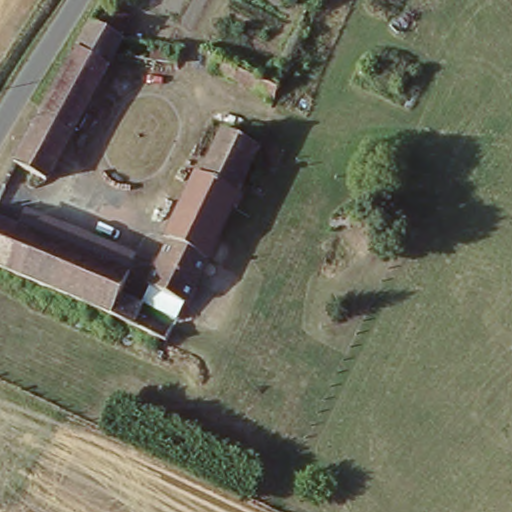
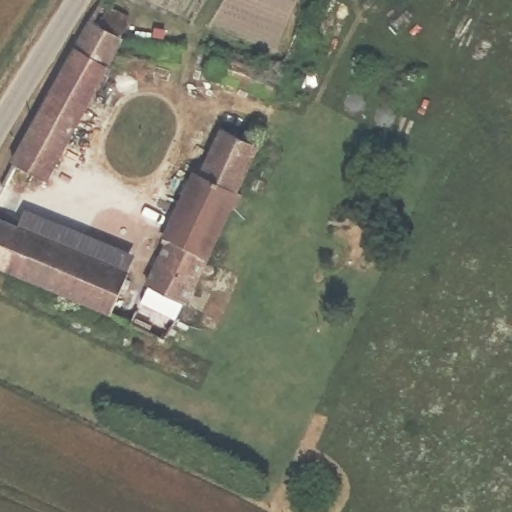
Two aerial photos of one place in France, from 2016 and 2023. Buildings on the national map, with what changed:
unchanged [(122,37),(185,41),(180,65),(120,56),(110,70),(50,182),(10,161),(73,46),(91,18),(102,2),(135,18),(122,37)]
unchanged [(268,67),(274,55),(283,60),(281,67),(272,94),(212,67),(220,47),(268,67)]
unchanged [(141,296),(150,278),(167,240),(161,238),(192,168),(199,172),(220,125),(257,142),(239,187),(246,190),(238,206),(231,203),(179,313),(141,296)]
unchanged [(22,227),(29,212),(136,255),(130,270),(22,227)]
unchanged [(17,278),(0,271),(0,219),(22,227),(130,270),(110,314),(106,313),(17,278)]
unchanged [(110,314),(130,270),(150,278),(141,296),(129,323),(110,314)]

